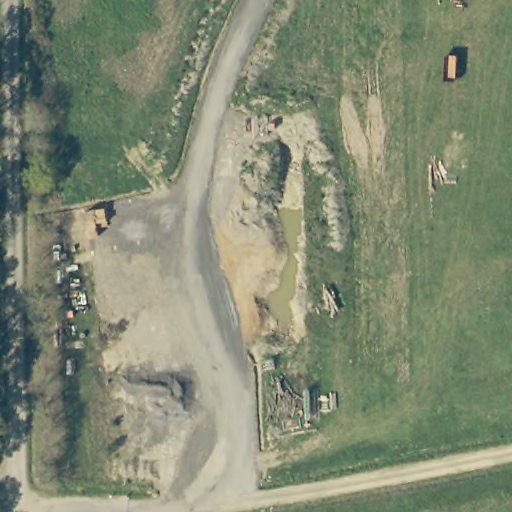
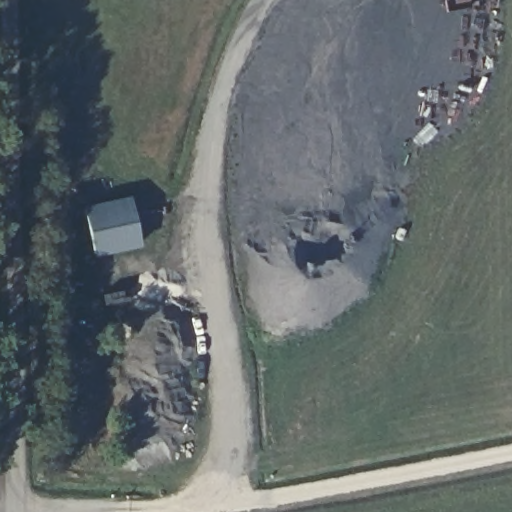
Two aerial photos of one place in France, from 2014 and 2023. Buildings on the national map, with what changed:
new [(94,258),(82,207),(130,197),(142,249),(94,258)]

